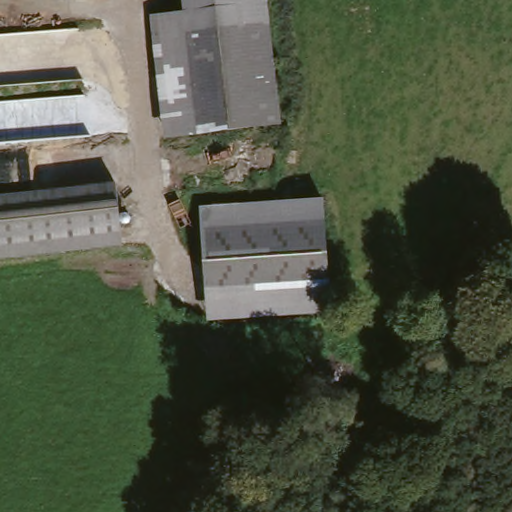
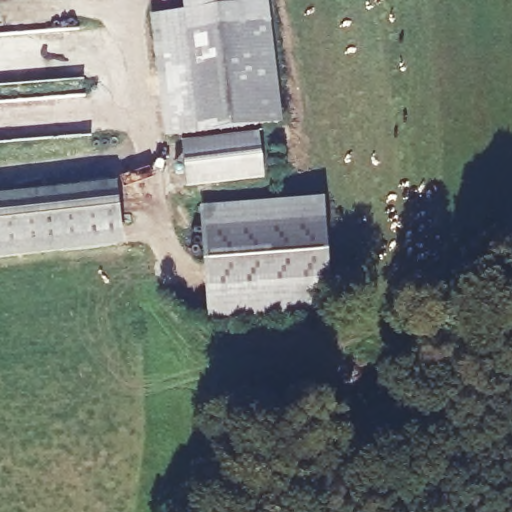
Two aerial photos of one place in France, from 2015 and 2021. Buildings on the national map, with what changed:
unchanged [(199,138),(184,11),(183,0),(275,0),(288,124),(199,138)]
unchanged [(149,15),(184,11),(199,138),(163,139),(149,15)]
new [(183,143),(261,134),(265,178),(188,188),(183,143)]
unchanged [(0,258),(0,195),(123,181),(126,243),(0,258)]
unchanged [(330,196),(336,311),(208,322),(202,204),(330,196)]

